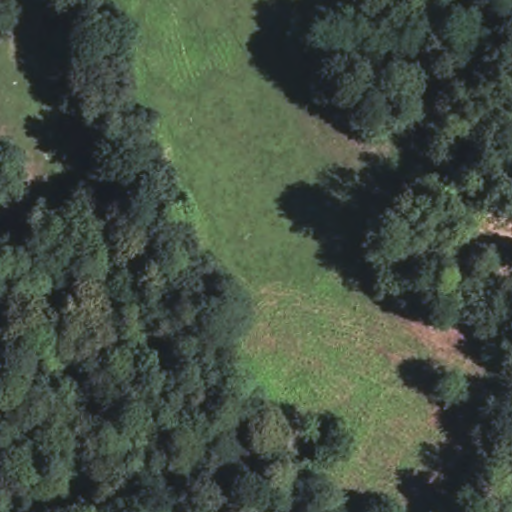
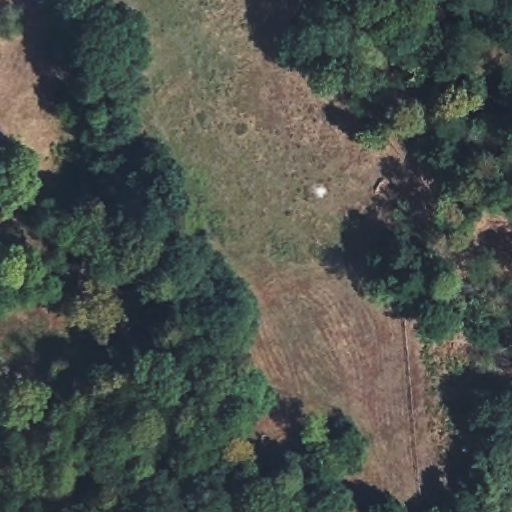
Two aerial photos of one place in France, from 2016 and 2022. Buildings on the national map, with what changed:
[]

